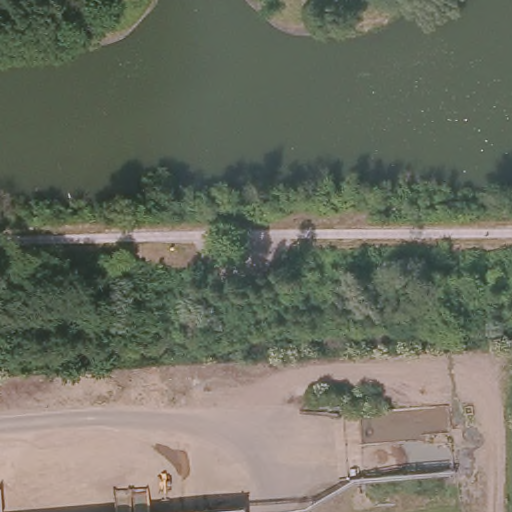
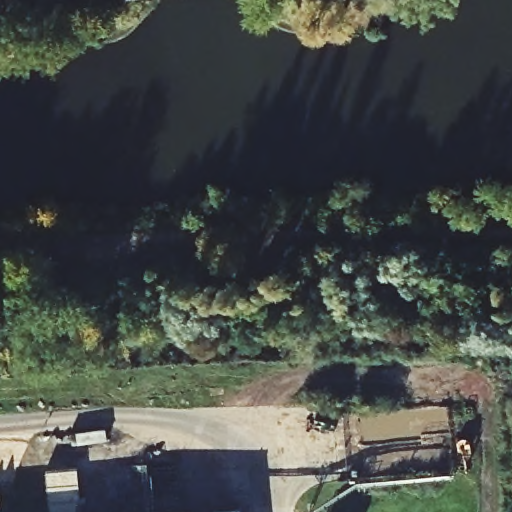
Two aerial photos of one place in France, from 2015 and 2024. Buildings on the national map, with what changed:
new [(46,471),(77,468),(81,512),(49,512),(46,471)]
unchanged [(240,510),(240,512),(209,512),(240,510)]

